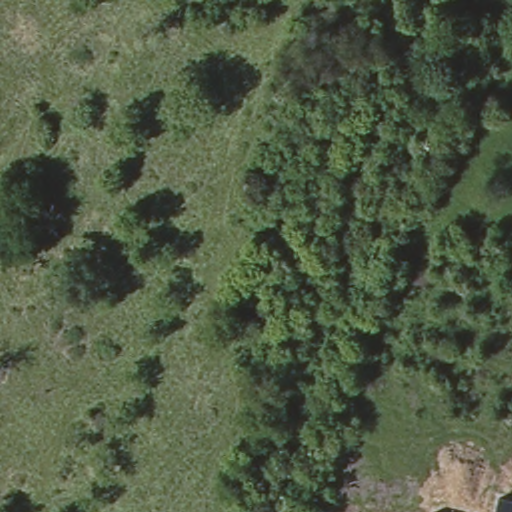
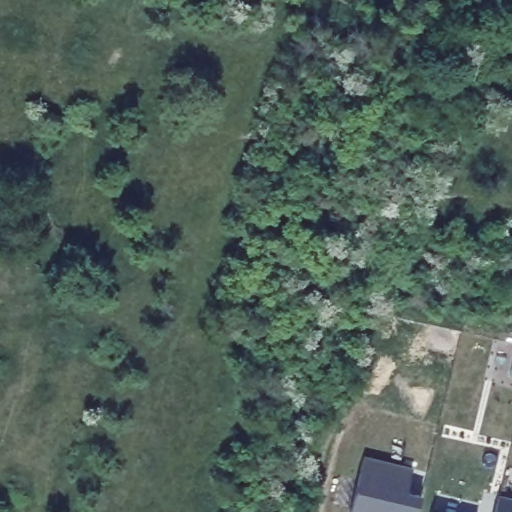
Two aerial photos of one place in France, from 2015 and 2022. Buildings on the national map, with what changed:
new [(407,489),(422,493),(418,512),(351,512),(364,456),(414,466),(407,489)]
unchanged [(502,493),(512,496),(512,512),(496,512),(502,493)]

